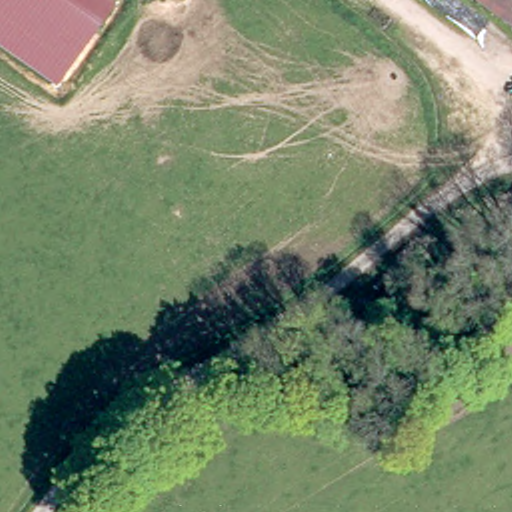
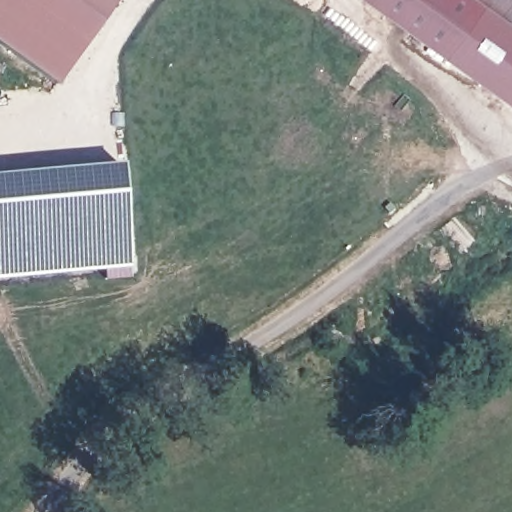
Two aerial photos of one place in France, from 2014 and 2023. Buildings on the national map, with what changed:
unchanged [(56,85),(0,46),(0,0),(116,0),(56,85)]
new [(512,21),(512,106),(362,0),(483,0),(512,21)]
unchanged [(483,0),(512,0),(512,21),(483,0)]
new [(131,277),(105,279),(105,269),(0,279),(0,177),(121,165),(131,277)]

